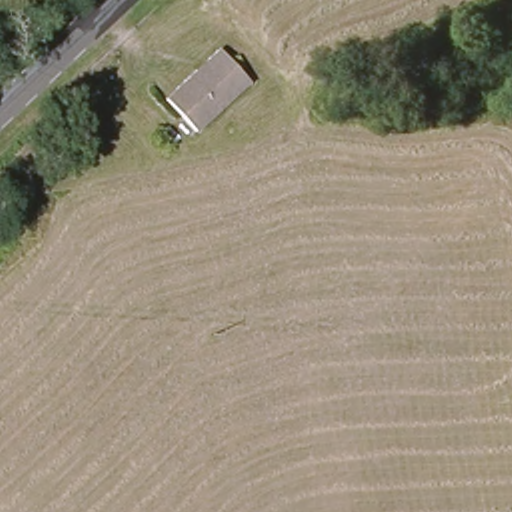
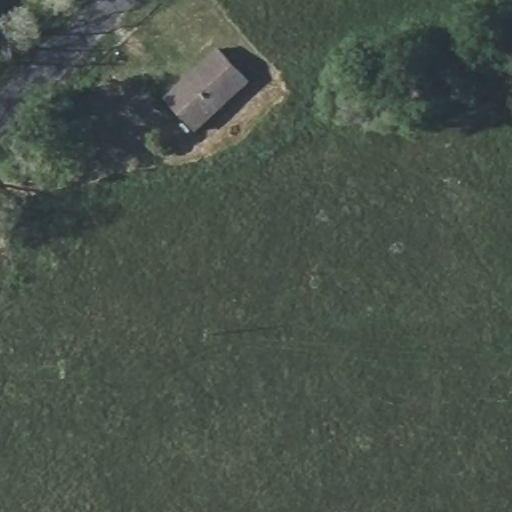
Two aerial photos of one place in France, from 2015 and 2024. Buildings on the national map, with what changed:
unchanged [(171,99),(221,50),(254,84),(202,131),(171,99)]

